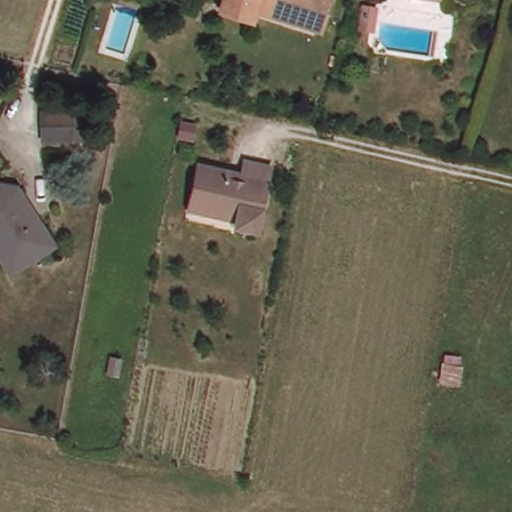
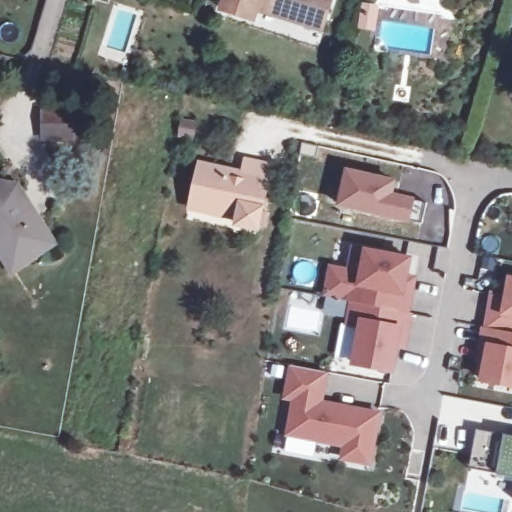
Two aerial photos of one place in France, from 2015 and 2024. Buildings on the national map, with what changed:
unchanged [(260,11),(259,16),(257,24),(221,13),(225,0),(331,0),(326,18),(323,29),(302,23),(260,11)]
unchanged [(47,114),(72,113),(82,113),(82,141),(73,142),(48,143),(47,114)]
unchanged [(265,226),(259,225),(259,229),(238,225),(239,219),(220,215),(192,209),(194,199),(201,166),(244,175),(246,162),(271,167),(262,213),(268,215),(265,226)]
new [(345,169),(394,179),(391,193),(428,201),(424,223),(338,204),(345,169)]
unchanged [(23,193),(59,245),(20,276),(0,251),(0,189),(23,193)]
new [(412,292),(407,312),(352,301),(325,295),(330,266),(349,270),(353,247),(410,258),(403,291),(406,276),(414,277),(412,292)]
new [(509,294),(512,277),(512,330),(488,325),(490,308),(494,291),(509,294)]
new [(407,312),(412,312),(408,330),(400,329),(392,370),(353,363),(360,326),(347,324),(352,301),(407,312)]
new [(512,330),(512,383),(484,378),(490,344),(487,360),(479,358),(482,343),(485,325),(488,325),(512,330)]
demolished [(460,387),(440,383),(442,362),(463,368),(460,387)]
new [(331,406),(379,416),(370,465),(342,460),(345,447),(288,435),(295,400),(285,398),(292,366),(327,373),(322,404),(331,406)]
new [(474,428),(512,435),(512,476),(494,473),(467,468),(469,454),(474,428)]

